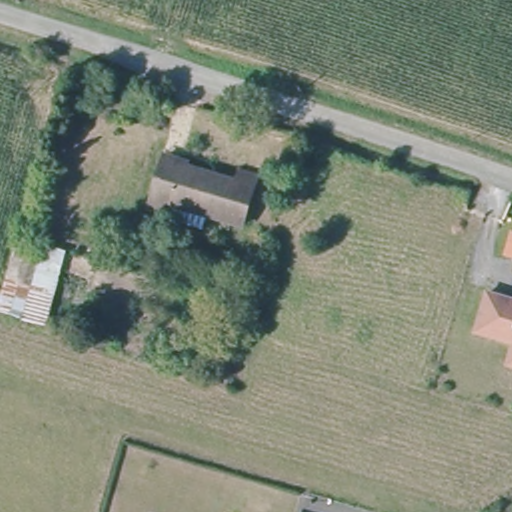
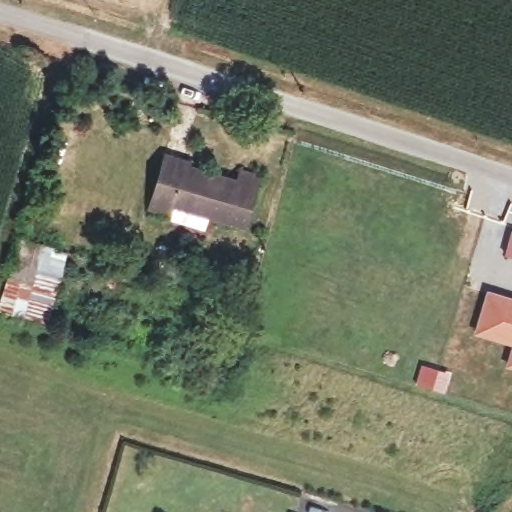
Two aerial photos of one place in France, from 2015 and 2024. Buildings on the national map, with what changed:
unchanged [(172,202),(168,210),(149,203),(165,152),(186,160),(184,164),(239,180),(244,162),(261,167),(254,184),(242,224),(172,202)]
unchanged [(512,258),(504,255),(511,231),(512,231),(512,258)]
unchanged [(54,266),(43,306),(18,298),(29,259),(54,266)]
unchanged [(487,290),(498,293),(512,297),(512,343),(475,331),(487,290)]
unchanged [(512,357),(512,363),(510,362),(512,357)]

